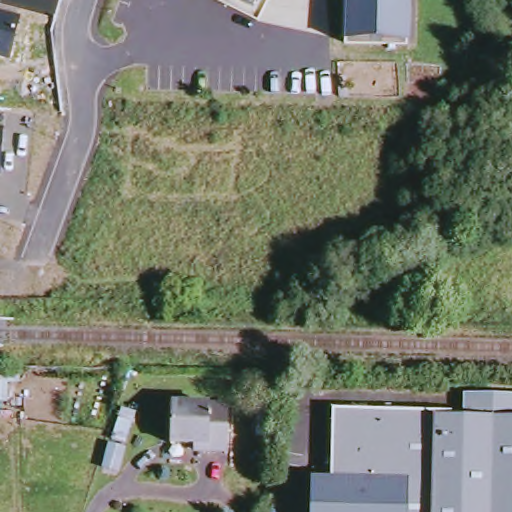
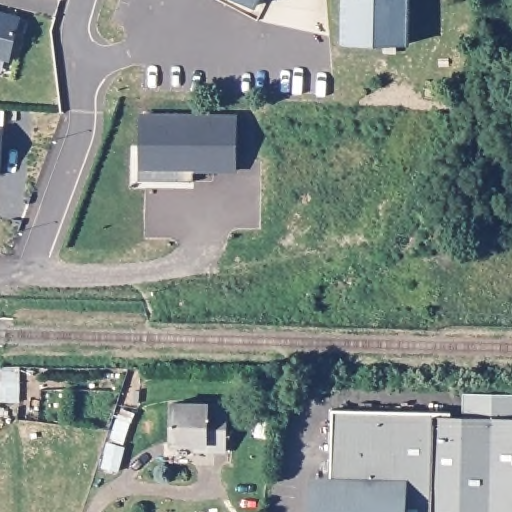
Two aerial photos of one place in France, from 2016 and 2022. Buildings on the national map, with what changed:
unchanged [(237,0),(264,0),(258,11),(237,0)]
unchanged [(344,0),(412,0),(412,48),(344,46),(344,0)]
unchanged [(0,11),(21,18),(10,61),(0,59),(0,11)]
new [(140,181),(140,114),(235,114),(237,172),(193,170),(192,180),(140,181)]
unchanged [(0,176),(0,128),(3,129),(1,176),(0,176)]
unchanged [(332,479),(335,408),(447,412),(447,419),(462,420),(464,393),(512,394),(512,512),(331,512),(332,479)]
unchanged [(189,441),(165,440),(167,401),(223,402),(222,448),(203,448),(189,447),(189,441)]
unchanged [(331,512),(309,512),(310,478),(332,479),(331,512)]

